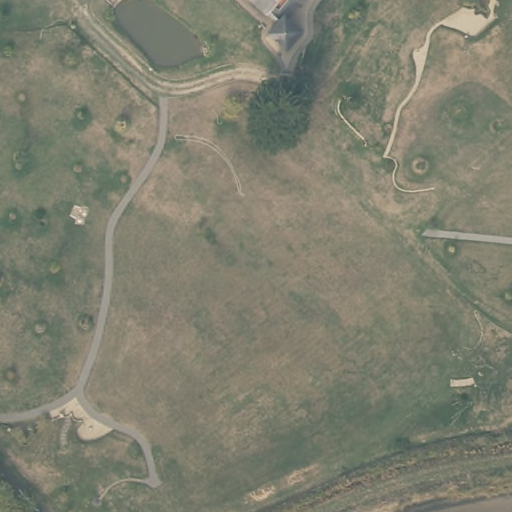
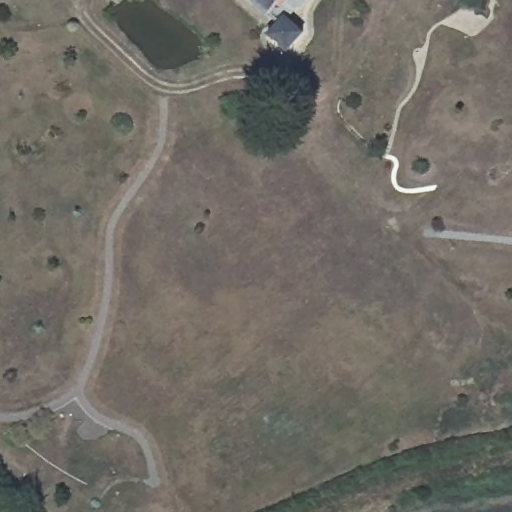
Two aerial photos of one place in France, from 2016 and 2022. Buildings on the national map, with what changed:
unchanged [(248,0),(279,0),(266,15),(248,0)]
unchanged [(300,29),(283,47),(267,31),(274,23),(266,15),(279,0),(299,0),(286,15),(300,29)]

